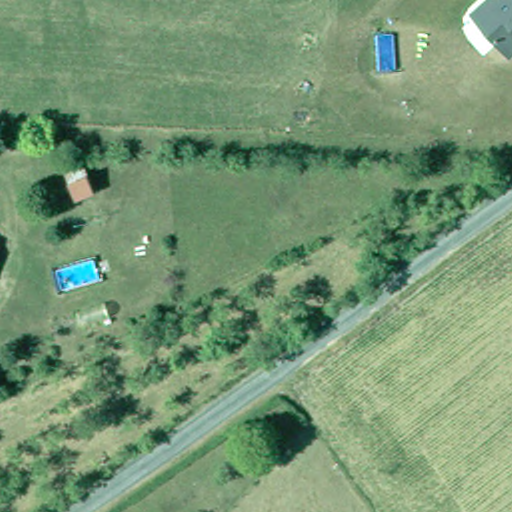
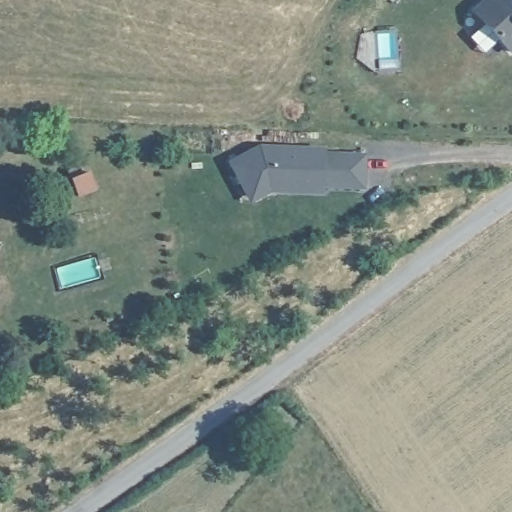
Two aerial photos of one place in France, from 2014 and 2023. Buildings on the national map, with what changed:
unchanged [(512,0),(512,49),(507,54),(469,12),(480,0),(512,0)]
new [(323,154),(364,155),(362,191),(321,190),(322,197),(269,195),(249,204),(225,161),(259,145),(323,147),(323,154)]

